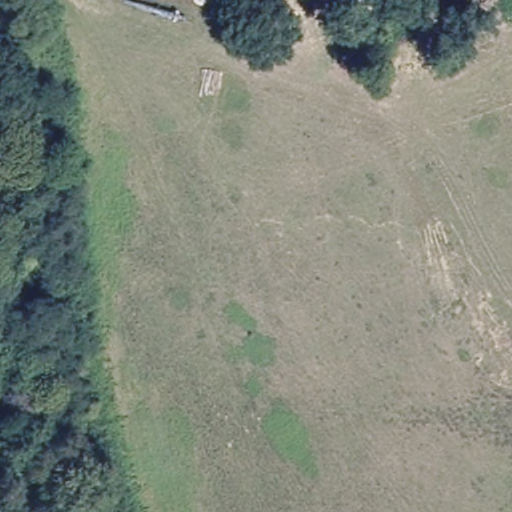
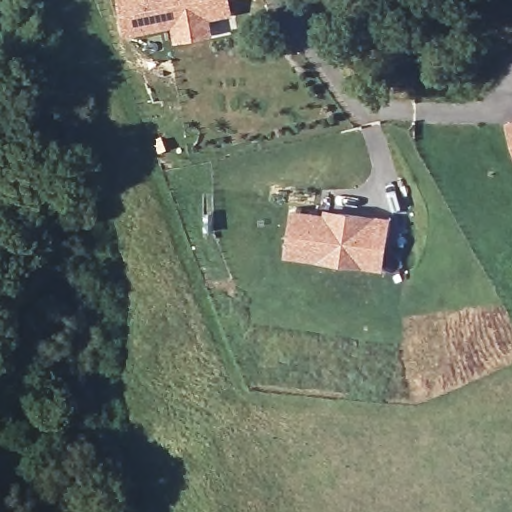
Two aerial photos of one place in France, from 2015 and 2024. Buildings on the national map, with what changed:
new [(176,37),(173,20),(126,29),(121,0),(213,0),(225,0),(226,11),(204,15),(207,31),(176,37)]
unchanged [(498,130),(512,127),(512,167),(508,168),(507,164),(498,130)]
new [(350,271),(277,260),(283,219),(315,224),(315,219),(328,220),(376,227),(372,257),(370,273),(350,271)]

